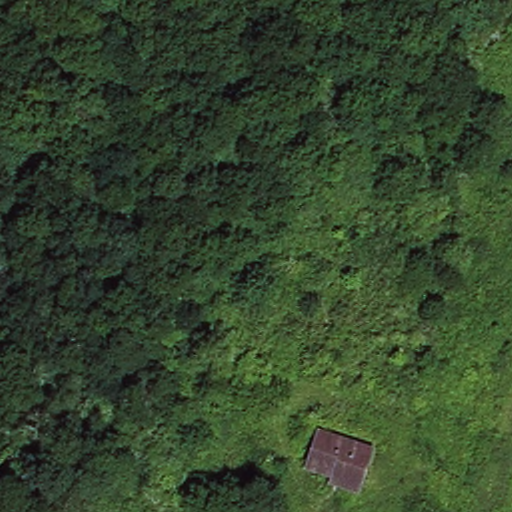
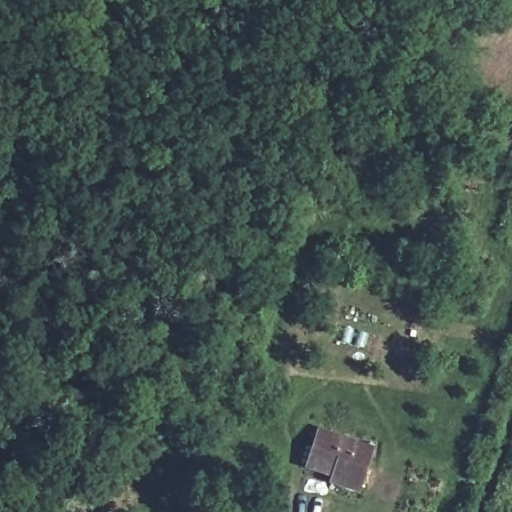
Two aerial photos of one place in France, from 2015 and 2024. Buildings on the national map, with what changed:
unchanged [(326,485),(328,475),(302,467),(313,428),(368,445),(359,477),(354,493),(326,485)]

